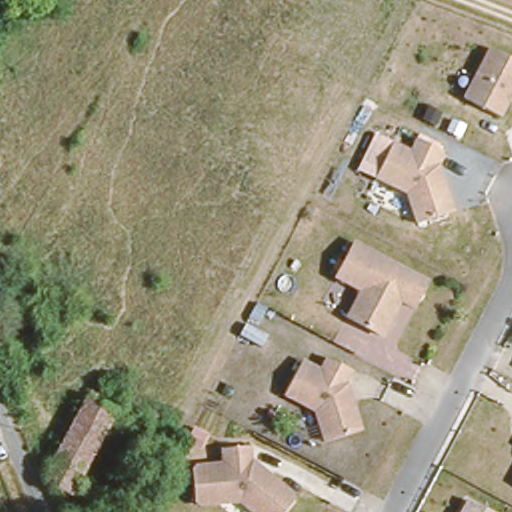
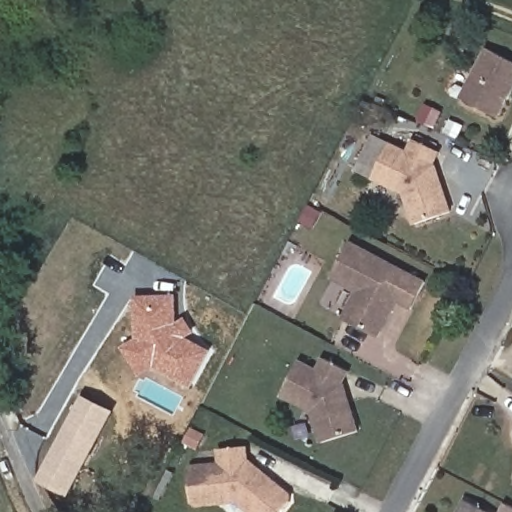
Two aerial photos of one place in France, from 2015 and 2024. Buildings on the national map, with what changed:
unchanged [(512,58),(512,87),(497,115),(460,95),(487,45),(512,58)]
unchanged [(408,150),(415,137),(439,149),(433,162),(435,164),(438,172),(435,173),(436,179),(441,180),(451,210),(415,222),(404,190),(372,175),(389,141),(408,150)]
unchanged [(424,279),(411,305),(391,295),(389,300),(391,308),(378,333),(344,315),(358,288),(333,275),(351,240),(424,279)]
new [(212,351),(192,388),(155,368),(140,377),(121,345),(138,338),(134,296),(176,295),(178,322),(186,317),(194,332),(187,338),(212,351)]
unchanged [(317,370),(324,357),(349,370),(341,383),(344,384),(346,393),(343,394),(345,399),(349,401),(358,430),(322,442),(312,410),(281,394),(298,360),(317,370)]
unchanged [(42,471),(87,390),(96,395),(93,401),(109,410),(64,491),(39,476),(42,471)]
unchanged [(220,463),(218,448),(245,446),(247,461),(248,461),(254,466),(254,472),(260,477),(266,475),(288,495),(289,501),(281,512),(249,512),(236,501),(196,505),(191,500),(188,472),(193,466),(220,463)]
unchanged [(467,500),(492,512),(461,512),(467,500)]

